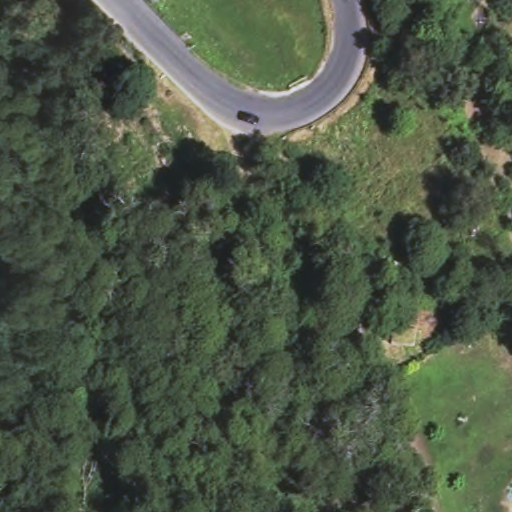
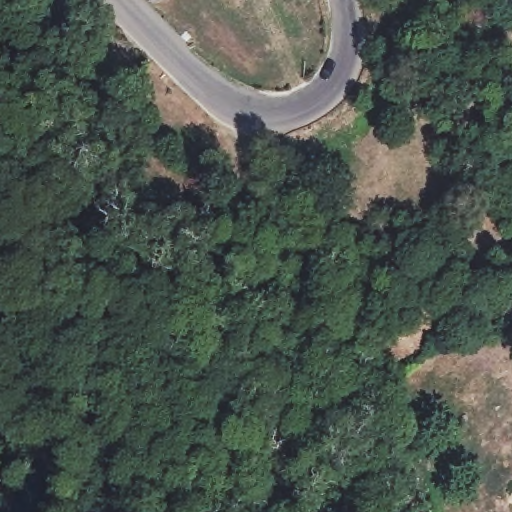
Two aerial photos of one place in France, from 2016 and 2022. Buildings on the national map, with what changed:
[]

